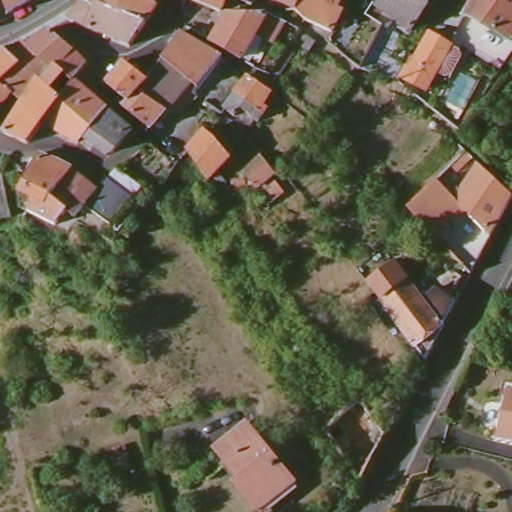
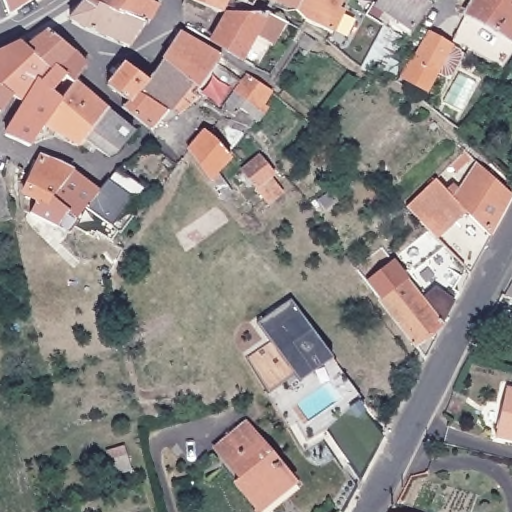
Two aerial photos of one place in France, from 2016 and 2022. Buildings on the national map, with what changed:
unchanged [(10,14),(4,0),(32,0),(31,1),(10,14)]
unchanged [(87,0),(159,0),(156,5),(145,24),(104,8),(100,13),(85,3),(87,0)]
unchanged [(193,0),(229,0),(220,14),(193,0)]
unchanged [(238,0),(257,0),(254,6),(238,0)]
unchanged [(282,5),(271,0),(302,0),(298,10),(284,3),(282,5)]
unchanged [(296,14),(298,10),(302,0),(349,0),(332,34),(305,21),(296,14)]
unchanged [(396,19),(380,7),(384,0),(423,0),(429,4),(412,30),(396,19)]
unchanged [(511,36),(467,12),(472,0),(512,0),(512,37),(511,36)]
unchanged [(129,46),(85,28),(72,19),(85,3),(100,13),(104,8),(145,24),(129,46)]
unchanged [(500,63),(452,38),(467,12),(511,36),(512,37),(512,39),(500,63)]
unchanged [(255,39),(244,60),(212,41),(228,14),(266,14),(286,25),(272,48),(255,39)]
unchanged [(76,50),(88,65),(76,84),(27,45),(50,30),(76,50)]
unchanged [(460,55),(452,73),(445,74),(436,70),(427,88),(399,75),(411,56),(417,60),(432,30),(451,40),(449,44),(458,49),(460,55)]
unchanged [(129,101),(109,84),(112,79),(122,65),(125,61),(151,75),(159,65),(162,59),(180,33),(222,58),(206,81),(200,91),(202,94),(192,101),(177,114),(172,108),(167,111),(151,130),(124,108),(129,101)]
unchanged [(27,45),(76,84),(47,124),(32,145),(7,136),(25,104),(14,94),(0,110),(0,51),(22,41),(27,45)]
unchanged [(253,113),(247,119),(237,110),(230,117),(218,107),(245,75),(266,88),(266,89),(249,109),(253,113)]
unchanged [(83,147),(47,124),(76,84),(109,109),(87,141),(83,147)]
unchanged [(135,129),(122,153),(107,156),(87,141),(109,109),(135,129)]
unchanged [(209,181),(189,151),(205,130),(217,139),(231,158),(209,181)]
unchanged [(72,219),(64,214),(53,229),(26,214),(31,200),(20,194),(37,158),(65,170),(93,192),(81,209),(72,219)]
unchanged [(271,176),(280,188),(263,200),(242,173),(260,158),(273,174),(271,176)]
unchanged [(512,198),(512,201),(491,239),(455,203),(477,166),(512,198)]
unchanged [(0,173),(2,174),(13,220),(0,223),(0,173)]
unchanged [(81,209),(93,192),(102,179),(128,195),(129,197),(110,229),(81,209)]
unchanged [(471,278),(408,213),(436,184),(455,203),(491,239),(471,278)]
unchanged [(420,358),(369,291),(362,281),(387,261),(417,298),(432,286),(451,299),(442,315),(420,358)]
new [(324,382),(301,381),(294,372),(270,393),(247,359),(272,342),(259,324),(290,301),(332,359),(324,382)]
unchanged [(492,434),(503,387),(512,388),(512,440),(511,439),(492,434)]
unchanged [(324,433),(360,400),(387,438),(362,486),(324,433)]
unchanged [(234,483),(240,478),(217,451),(246,425),(292,479),(257,511),(234,483)]

